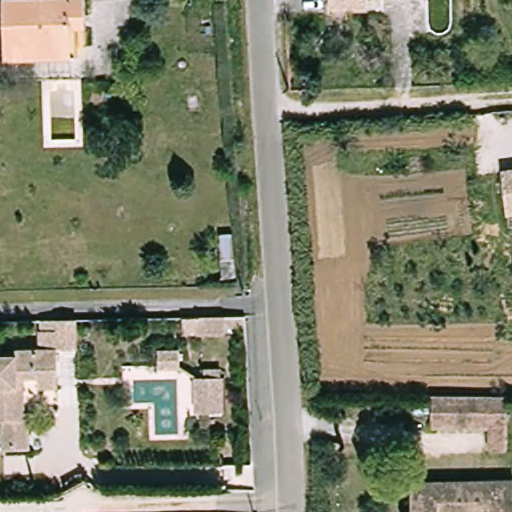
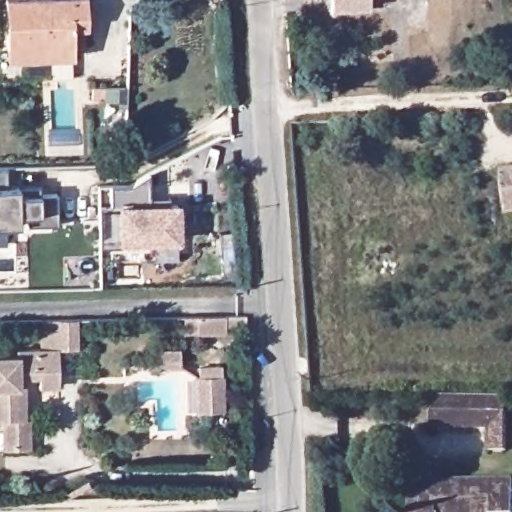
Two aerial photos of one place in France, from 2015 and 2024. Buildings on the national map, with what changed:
unchanged [(5,47),(3,0),(84,0),(84,15),(85,29),(70,29),(70,46),(69,59),(6,60),(5,47)]
unchanged [(355,6),(332,6),(332,5),(332,0),(354,0),(355,5),(355,6)]
unchanged [(506,169),(512,168),(512,214),(509,214),(506,169)]
new [(6,169),(7,189),(18,189),(39,188),(39,196),(57,196),(57,226),(28,227),(27,217),(19,217),(19,225),(0,226),(0,169),(6,169)]
new [(110,207),(110,187),(131,187),(149,175),(148,203),(180,204),(180,244),(117,244),(100,247),(100,207),(110,207)]
unchanged [(80,348),(63,348),(63,372),(28,373),(29,418),(34,418),(34,449),(9,450),(8,419),(0,419),(0,352),(20,352),(19,350),(45,348),(45,330),(46,330),(46,319),(62,318),(79,318),(80,348)]
unchanged [(243,319),(244,331),(222,331),(222,337),(194,337),(194,320),(222,320),(243,319)]
unchanged [(176,355),(176,371),(155,371),(155,355),(176,355)]
unchanged [(218,381),(219,416),(193,416),(192,381),(218,381)]
unchanged [(507,393),(507,448),(490,448),(490,426),(433,426),(433,393),(507,393)]
unchanged [(415,497),(415,482),(428,482),(504,482),(504,487),(512,487),(512,512),(415,512),(415,497)]

